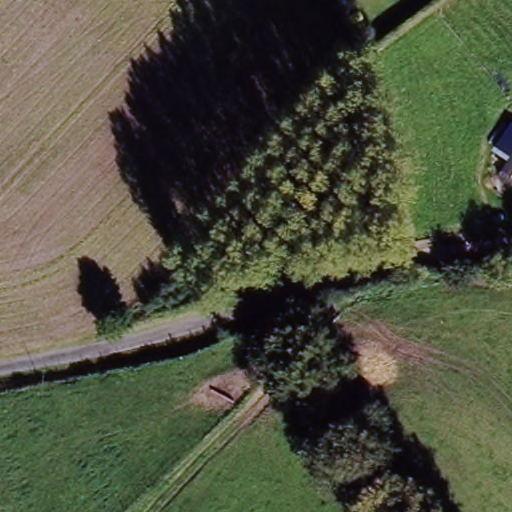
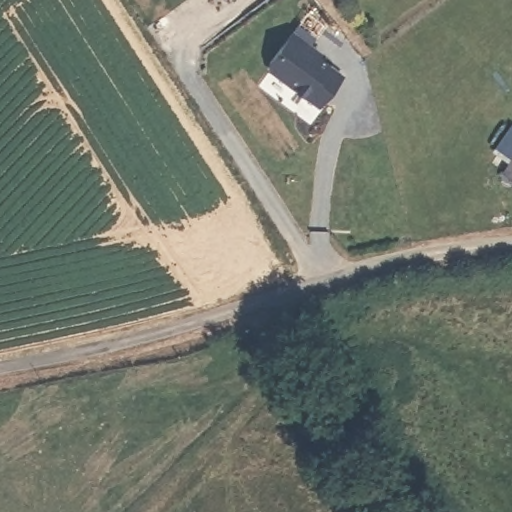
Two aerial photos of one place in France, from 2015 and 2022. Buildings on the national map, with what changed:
new [(293,36),(311,48),(308,52),(343,77),(321,109),(272,74),(271,67),(293,36)]
unchanged [(512,161),(512,169),(509,166),(512,161)]

